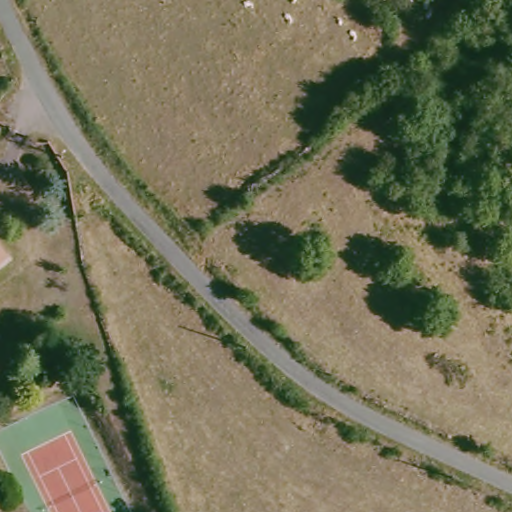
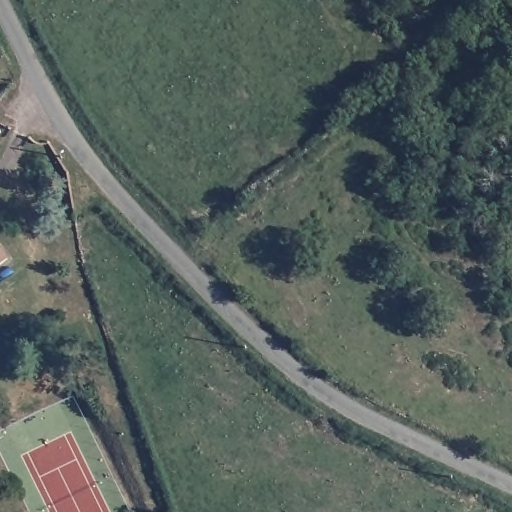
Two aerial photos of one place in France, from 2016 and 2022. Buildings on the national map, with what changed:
unchanged [(0,267),(0,256),(5,262),(0,267)]

